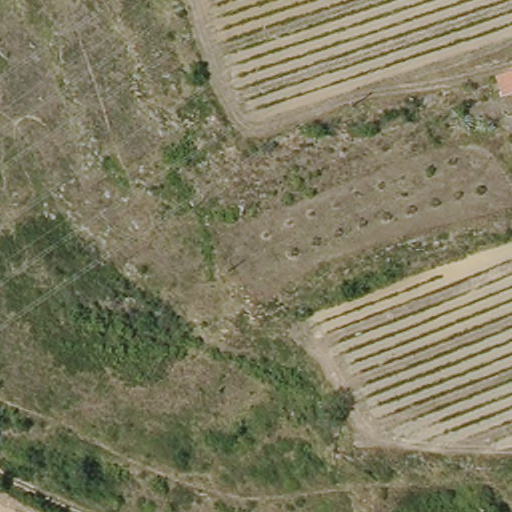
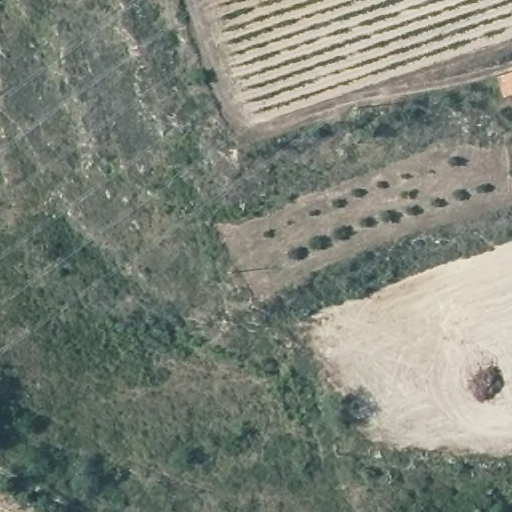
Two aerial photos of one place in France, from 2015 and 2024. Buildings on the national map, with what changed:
unchanged [(512,71),(512,90),(495,93),(495,74),(512,71)]

